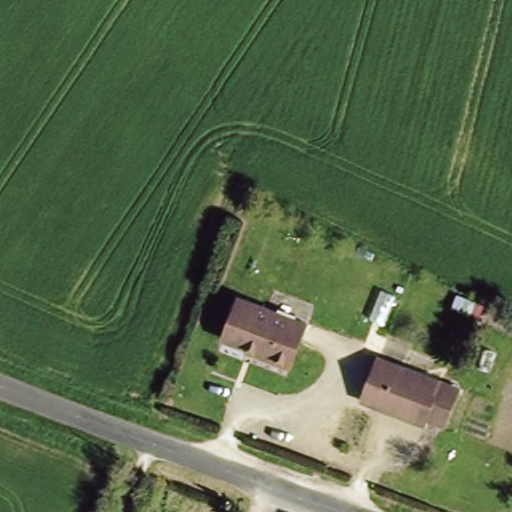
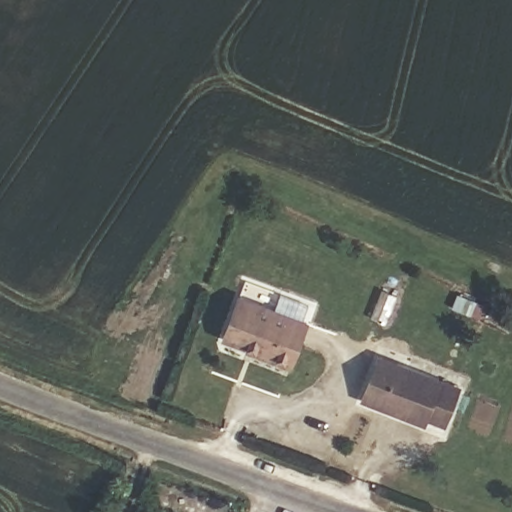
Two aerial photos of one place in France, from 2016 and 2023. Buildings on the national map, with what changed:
unchanged [(263,352),(222,331),(243,290),(284,310),(263,352)]
unchanged [(314,325),(293,367),(263,352),(284,310),(314,325)]
unchanged [(356,396),(378,349),(459,387),(443,431),(356,396)]
unchanged [(154,512),(144,512),(145,508),(154,512)]

